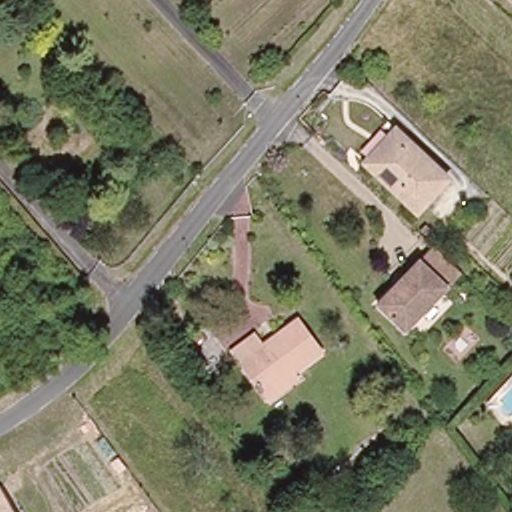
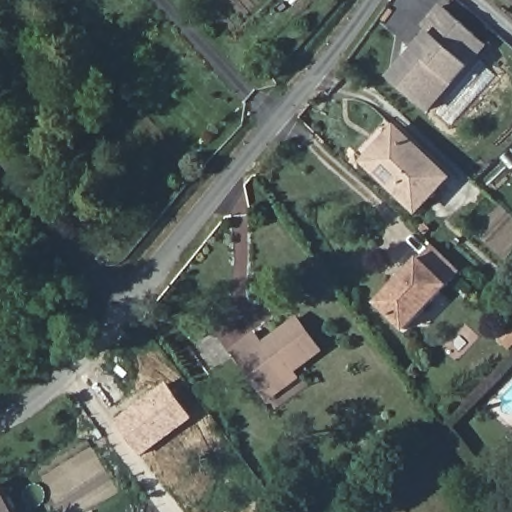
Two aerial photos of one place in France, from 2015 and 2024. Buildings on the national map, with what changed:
new [(393,78),(432,32),(426,27),(445,5),(477,33),(487,42),(469,63),(429,109),(393,78)]
unchanged [(420,210),(368,163),(395,134),(412,149),(416,146),(451,178),(420,210)]
unchanged [(432,244),(460,272),(406,329),(379,301),(432,244)]
unchanged [(264,400),(261,394),(236,363),(228,351),(250,334),(259,345),(293,319),(316,351),(289,372),(294,378),(264,400)]
new [(143,456),(118,421),(169,383),(195,419),(143,456)]
unchanged [(0,512),(0,488),(14,512),(0,512)]

